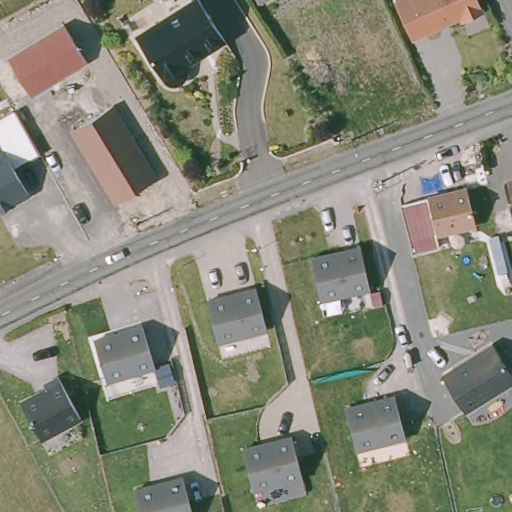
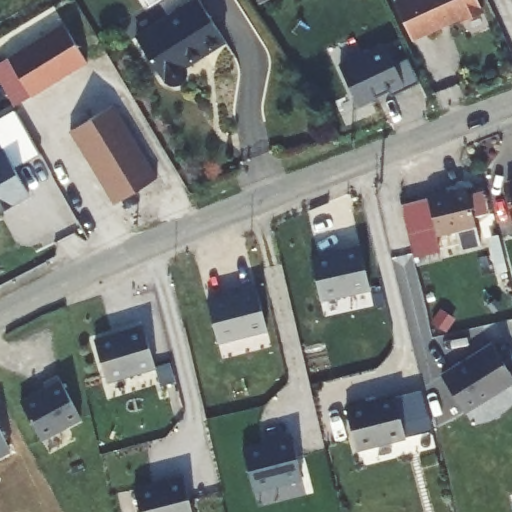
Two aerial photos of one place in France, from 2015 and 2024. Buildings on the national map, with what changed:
unchanged [(186,67),(186,69),(186,71),(186,72),(186,74),(186,76),(186,78),(184,79),(183,81),(181,82),(180,83),(178,84),(176,84),(174,84),(173,84),(171,84),(169,83),(168,82),(166,81),(165,79),(164,78),(163,80),(136,37),(194,0),(199,0),(224,41),(185,66),(186,67)]
new [(160,0),(146,8),(140,0),(160,0)]
unchanged [(253,0),(273,0),(257,8),(253,0)]
unchanged [(462,21),(459,17),(413,39),(394,0),(479,0),(484,10),(462,21)]
unchanged [(61,22),(84,60),(28,93),(5,56),(61,22)]
new [(341,65),(387,45),(394,63),(409,58),(419,82),(393,95),(389,89),(376,95),(376,99),(358,107),(341,65)]
unchanged [(159,179),(115,204),(69,126),(111,102),(159,179)]
unchanged [(0,144),(0,116),(12,108),(38,153),(14,166),(28,192),(0,208),(0,150),(3,149),(0,144)]
unchanged [(508,177),(512,176),(512,194),(508,177)]
unchanged [(427,197),(426,194),(463,184),(474,226),(438,234),(441,245),(414,252),(402,205),(427,197)]
unchanged [(361,246),(371,287),(321,298),(312,257),(361,246)]
unchanged [(257,287),(268,329),(219,341),(208,299),(257,287)]
unchanged [(143,326),(155,367),(107,382),(95,341),(143,326)]
unchanged [(512,371),(512,381),(464,410),(442,373),(492,341),(512,371)]
unchanged [(80,418),(39,438),(19,399),(45,385),(42,381),(57,373),(80,418)]
unchanged [(396,395),(406,436),(357,449),(346,407),(396,395)]
new [(0,457),(0,427),(13,451),(0,457)]
unchanged [(292,436),(303,477),(253,489),(243,448),(292,436)]
unchanged [(183,478),(192,512),(140,512),(134,491),(183,478)]

